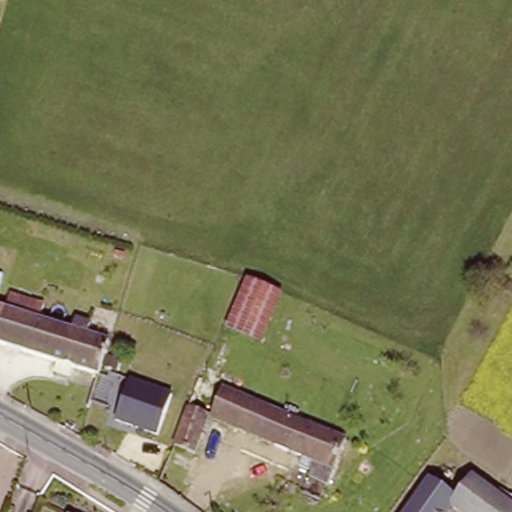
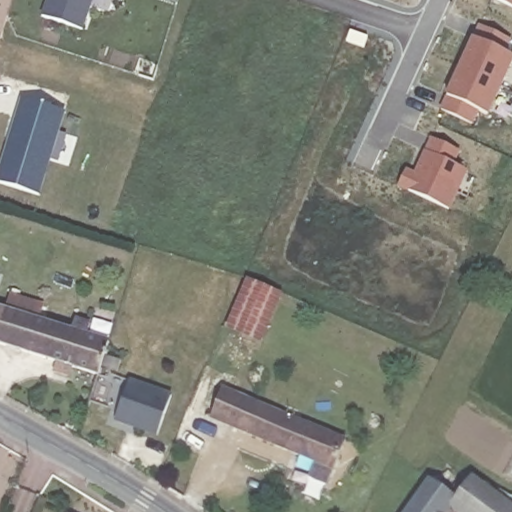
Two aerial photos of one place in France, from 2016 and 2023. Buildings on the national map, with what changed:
new [(95,0),(85,29),(43,16),(48,0),(95,0)]
new [(512,0),(512,7),(497,0),(512,0)]
new [(442,108),(480,25),(512,38),(512,42),(508,53),(512,54),(512,66),(490,114),(481,110),(475,124),(442,108)]
new [(349,29),(366,35),(362,45),(345,39),(349,29)]
new [(62,109),(34,191),(0,180),(0,153),(20,95),(62,109)]
new [(401,186),(407,171),(416,174),(431,138),(460,151),(455,165),(468,170),(450,209),(401,186)]
unchanged [(227,324),(247,279),(278,293),(264,326),(259,337),(227,324)]
unchanged [(56,361),(0,343),(0,307),(6,310),(11,294),(50,307),(46,322),(72,331),(76,319),(92,324),(88,336),(105,341),(96,374),(76,367),(72,377),(53,371),(56,361)]
demolished [(126,348),(106,410),(88,404),(97,374),(96,374),(105,341),(126,348)]
new [(158,436),(115,422),(132,379),(173,393),(158,436)]
unchanged [(297,460),(206,420),(186,411),(198,381),(280,416),(283,407),(300,414),(295,423),(344,444),(325,489),(307,482),(310,475),(294,468),(297,460)]
demolished [(200,435),(190,456),(171,448),(178,431),(180,425),(200,435)]
unchanged [(449,512),(409,512),(430,484),(447,497),(458,481),(466,487),(470,481),(512,510),(512,512),(451,512),(450,511),(449,512)]

